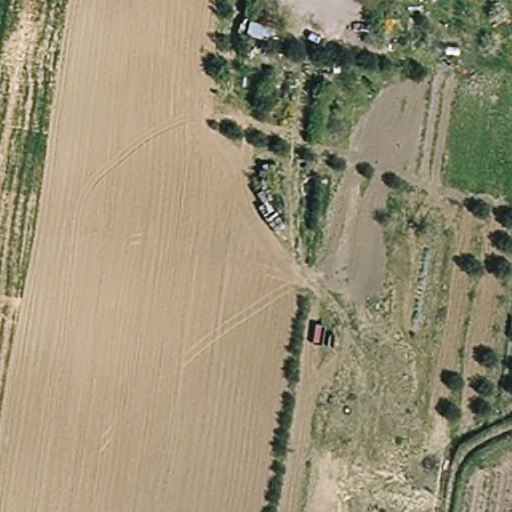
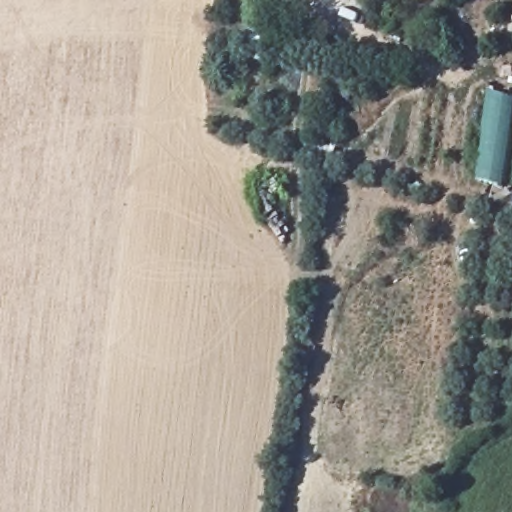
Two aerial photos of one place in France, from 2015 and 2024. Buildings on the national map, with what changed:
new [(512,95),(512,140),(505,187),(477,181),(489,92),(512,95)]

